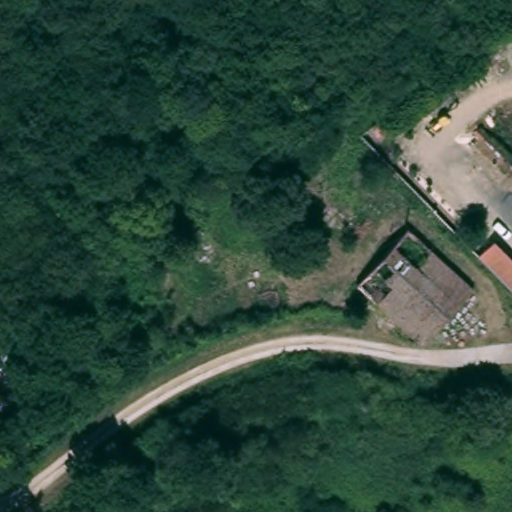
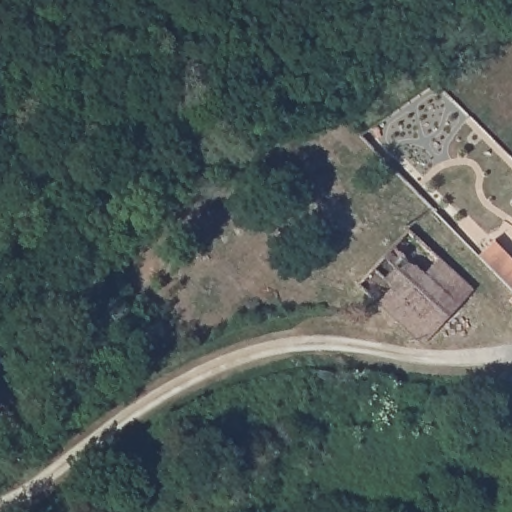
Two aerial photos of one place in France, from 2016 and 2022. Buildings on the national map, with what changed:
unchanged [(472,291),(426,338),(420,344),(410,335),(355,283),(409,228),(472,291)]
unchanged [(490,239),(512,260),(512,294),(504,286),(473,256),(490,239)]

